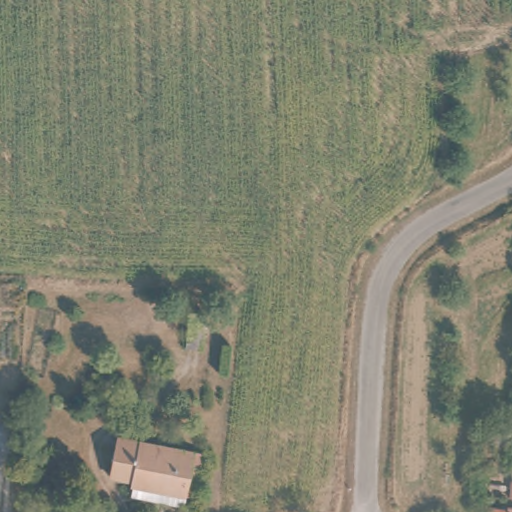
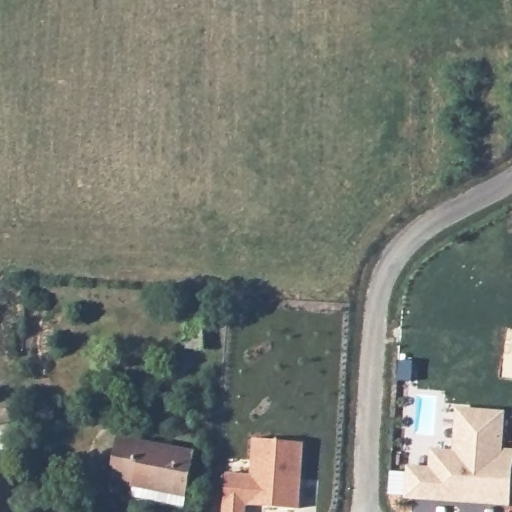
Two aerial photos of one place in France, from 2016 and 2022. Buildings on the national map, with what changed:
demolished [(209,310),(207,348),(189,346),(190,308),(209,310)]
new [(512,449),(512,506),(403,498),(406,464),(428,465),(429,447),(452,448),(455,406),(504,411),(501,448),(512,449)]
unchanged [(201,452),(191,508),(173,504),(175,493),(140,486),(141,482),(116,475),(124,436),(201,452)]
new [(247,504),(246,512),(221,512),(225,471),(249,473),(251,438),(304,442),(299,508),(247,504)]
unchanged [(512,512),(508,512),(509,511),(512,512)]

